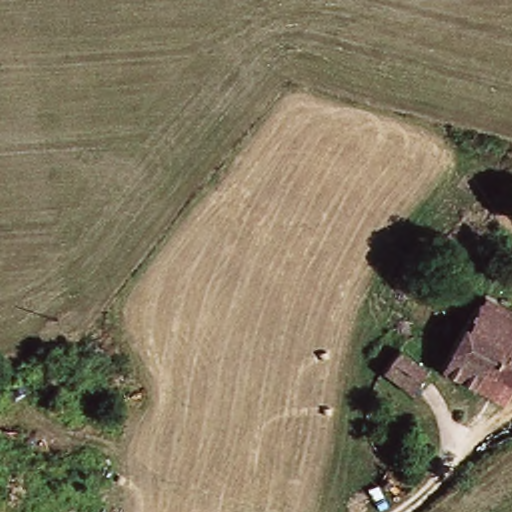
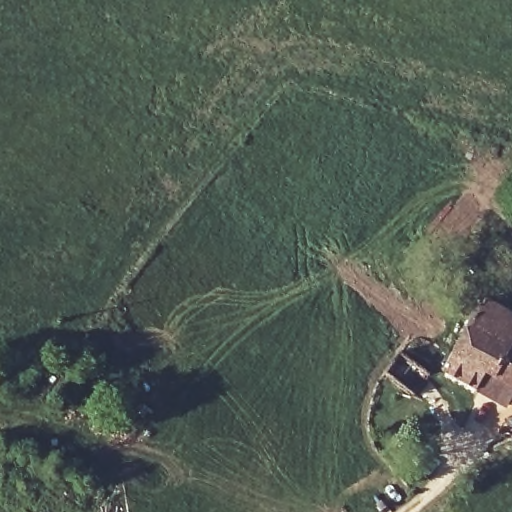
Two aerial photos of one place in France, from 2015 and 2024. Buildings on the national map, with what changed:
unchanged [(510,335),(512,336),(512,387),(485,371),(474,389),(438,368),(477,302),(512,322),(512,332),(510,335)]
unchanged [(400,403),(368,380),(380,358),(416,382),(400,403)]

